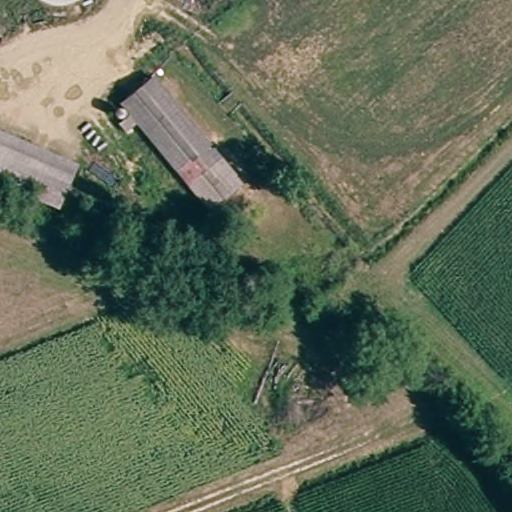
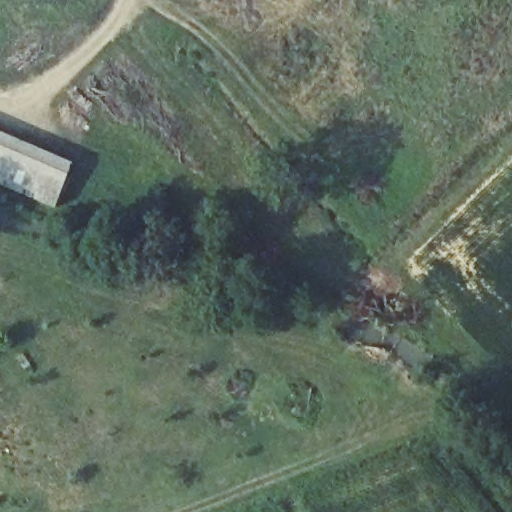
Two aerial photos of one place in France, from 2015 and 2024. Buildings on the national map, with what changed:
demolished [(206,210),(128,113),(122,117),(118,119),(115,119),(113,116),(113,109),(115,107),(153,75),(240,180),(206,210)]
unchanged [(70,168),(55,198),(0,174),(0,137),(70,168)]

